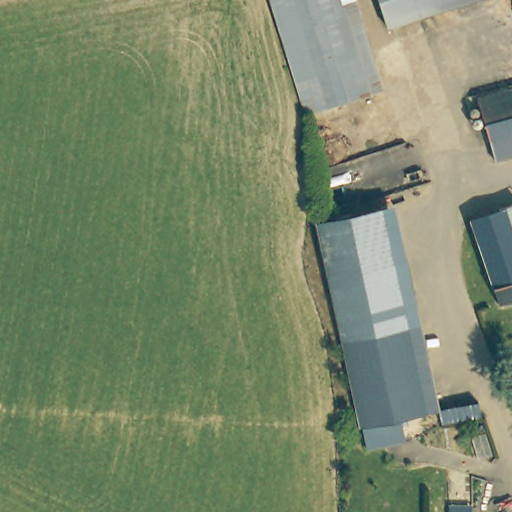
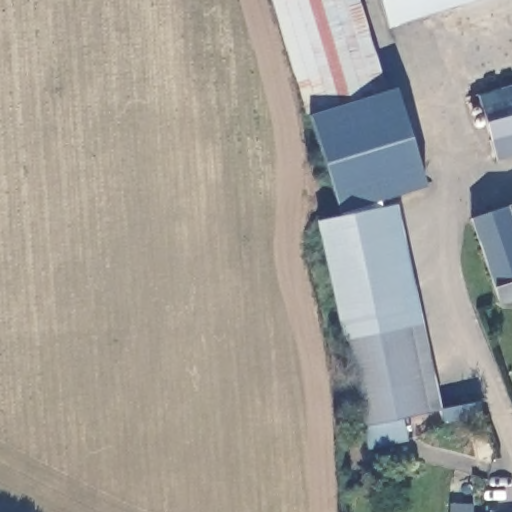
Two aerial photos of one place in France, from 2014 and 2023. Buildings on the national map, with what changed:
unchanged [(310,114),(275,0),(359,0),(386,90),(310,114)]
unchanged [(383,0),(486,0),(393,29),(383,0)]
new [(386,90),(388,91),(396,89),(426,187),(380,201),(382,208),(340,217),(310,114),(386,90)]
unchanged [(512,93),(512,151),(496,155),(481,101),(512,93)]
unchanged [(512,191),(512,235),(505,209),(501,194),(512,191)]
unchanged [(315,223),(395,205),(426,359),(386,368),(347,378),(315,223)]
unchanged [(512,235),(512,302),(499,305),(471,218),(505,209),(512,235)]
unchanged [(362,437),(360,426),(357,426),(347,378),(386,368),(426,359),(438,411),(399,418),(401,430),(403,439),(364,446),(362,437)]

